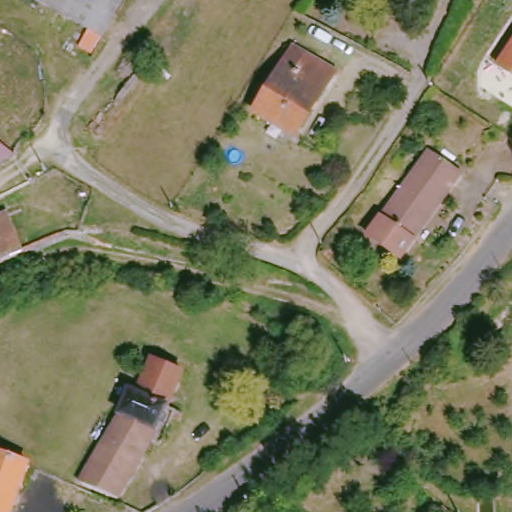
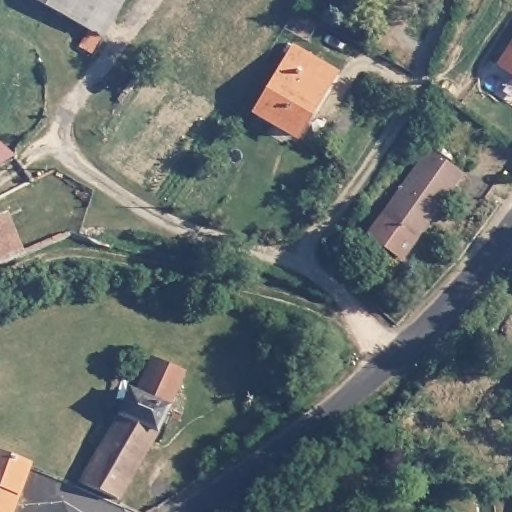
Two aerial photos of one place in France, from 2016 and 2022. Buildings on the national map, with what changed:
unchanged [(36,0),(121,0),(102,38),(36,0)]
unchanged [(497,66),(512,41),(512,75),(497,66)]
unchanged [(334,70),(295,133),(257,110),(295,46),(320,61),(334,70)]
unchanged [(0,161),(0,140),(15,152),(0,161)]
unchanged [(425,221),(407,248),(376,227),(421,158),(456,182),(430,224),(425,221)]
unchanged [(20,234),(11,241),(20,262),(0,266),(0,211),(8,208),(20,234)]
unchanged [(149,356),(190,381),(120,501),(78,477),(149,356)]
unchanged [(0,455),(28,467),(13,512),(0,512),(0,455)]

